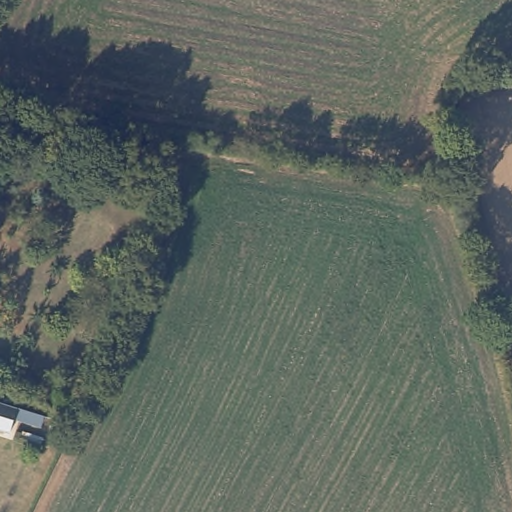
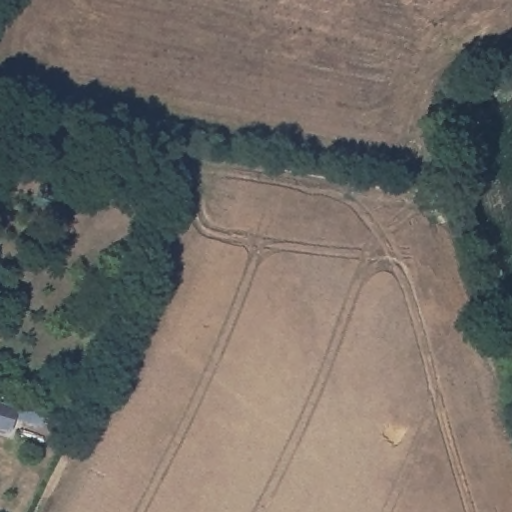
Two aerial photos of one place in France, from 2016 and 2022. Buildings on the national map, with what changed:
unchanged [(15,433),(0,429),(0,401),(23,408),(15,433)]

